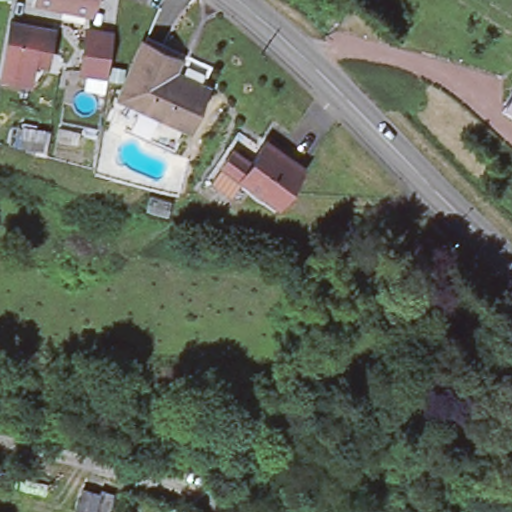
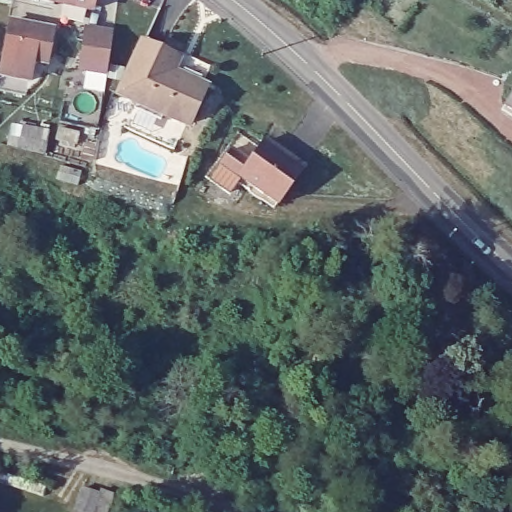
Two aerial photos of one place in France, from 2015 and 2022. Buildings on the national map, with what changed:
unchanged [(93,9),(50,0),(95,0),(93,9)]
unchanged [(49,29),(43,61),(29,58),(25,79),(0,75),(0,43),(5,21),(49,29)]
unchanged [(108,72),(82,68),(88,29),(114,33),(108,72)]
unchanged [(143,41),(178,58),(170,76),(185,84),(188,78),(206,87),(188,125),(120,93),(143,41)]
unchanged [(500,100),(512,81),(512,107),(500,100)]
unchanged [(220,190),(205,179),(200,176),(203,172),(212,160),(229,136),(252,153),(262,139),(300,166),(273,203),(237,177),(225,194),(220,190)]
unchanged [(88,482),(85,506),(71,504),(75,480),(88,482)]

